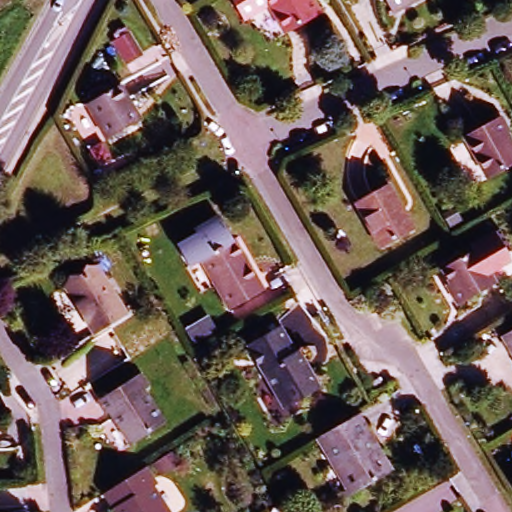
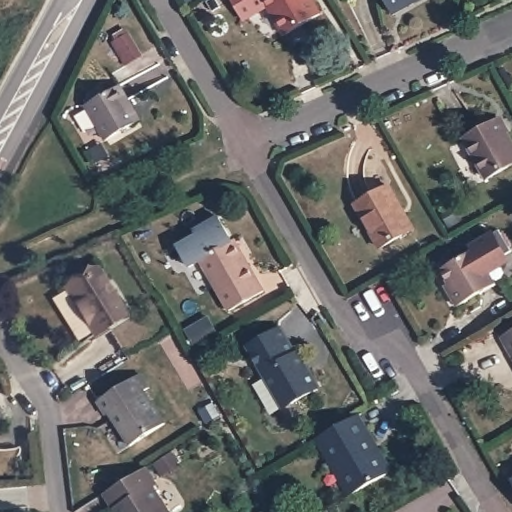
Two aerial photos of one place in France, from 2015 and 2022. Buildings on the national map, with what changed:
unchanged [(320,20),(284,40),(260,0),(308,0),(320,20)]
unchanged [(434,1),(396,22),(383,0),(433,0),(434,1)]
unchanged [(137,128),(105,147),(85,111),(121,90),(137,116),(142,125),(137,128)]
unchanged [(512,146),(512,171),(490,184),(466,142),(499,123),(512,146)]
unchanged [(388,189),(414,232),(376,254),(351,211),(388,189)]
unchanged [(234,245),(264,297),(229,317),(198,266),(234,245)]
unchanged [(442,290),(448,288),(440,275),(475,255),(495,291),(461,311),(456,313),(442,290)]
unchanged [(97,273),(127,321),(98,340),(67,292),(97,273)]
unchanged [(501,342),(512,335),(512,361),(501,342)]
unchanged [(279,336),(295,362),(300,359),(320,396),(283,417),(247,355),(279,336)]
unchanged [(142,381),(151,394),(145,398),(166,432),(133,453),(112,420),(109,422),(100,408),(142,381)]
unchanged [(2,422),(0,426),(0,421),(2,422)]
unchanged [(337,505),(345,500),(314,448),(361,421),(395,478),(348,506),(341,511),(337,505)]
unchanged [(153,492),(149,495),(160,512),(115,512),(108,500),(143,477),(153,492)]

